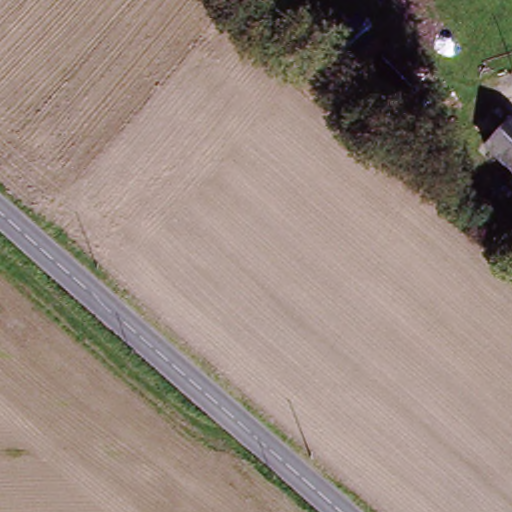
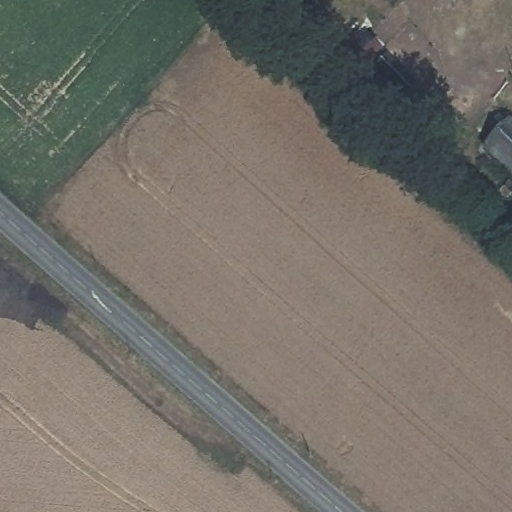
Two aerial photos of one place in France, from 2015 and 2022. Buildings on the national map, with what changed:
unchanged [(354,71),(342,57),(368,32),(380,46),(354,71)]
unchanged [(391,52),(419,80),(407,94),(378,65),(391,52)]
unchanged [(489,146),(512,122),(512,169),(489,146)]

